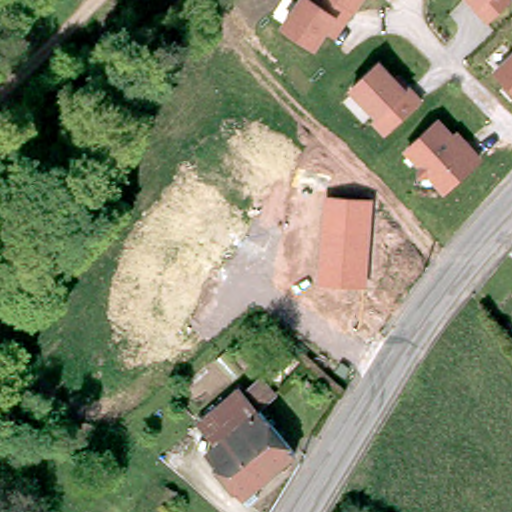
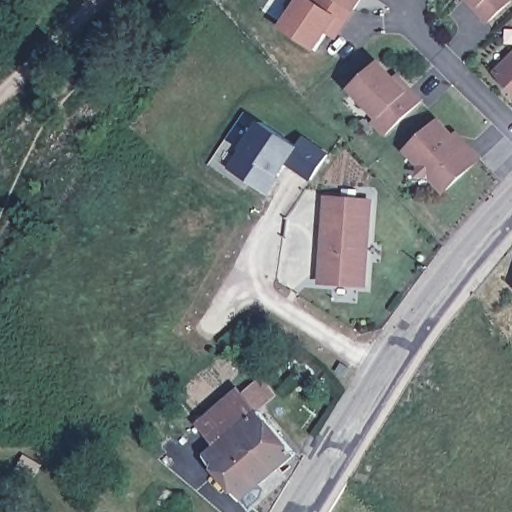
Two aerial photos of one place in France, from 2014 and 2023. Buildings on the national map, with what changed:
unchanged [(345,25),(335,19),(315,50),(284,29),(303,0),(310,0),(315,3),(317,0),(362,0),(354,11),(345,25)]
unchanged [(488,23),(476,10),(466,0),(510,0),(511,1),(488,23)]
unchanged [(512,53),(512,88),(495,70),(512,53)]
unchanged [(385,136),(373,123),(379,118),(352,89),(379,64),(395,81),(399,78),(410,89),(422,101),(385,136)]
new [(242,149),(260,121),(299,146),(303,138),(328,153),(311,181),(288,166),(280,178),(269,196),(228,169),(242,149)]
unchanged [(464,150),(468,147),(480,160),(445,192),(431,177),(420,177),(420,166),(407,151),(438,123),(464,150)]
unchanged [(373,200),(366,289),(318,284),(325,195),(373,200)]
unchanged [(512,272),(512,283),(507,278),(512,272)]
unchanged [(249,508),(243,501),(206,457),(220,447),(200,424),(240,390),(243,395),(262,375),(282,393),(260,413),(296,455),(253,492),(259,499),(249,508)]

